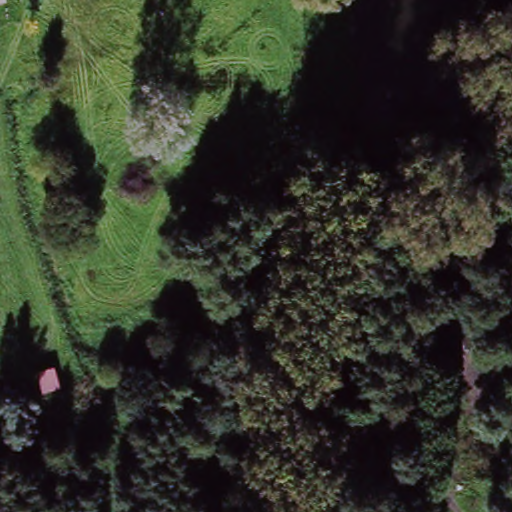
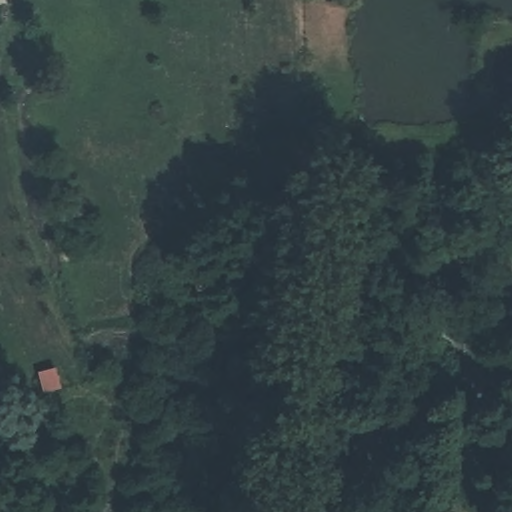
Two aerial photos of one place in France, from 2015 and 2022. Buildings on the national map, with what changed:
[]

